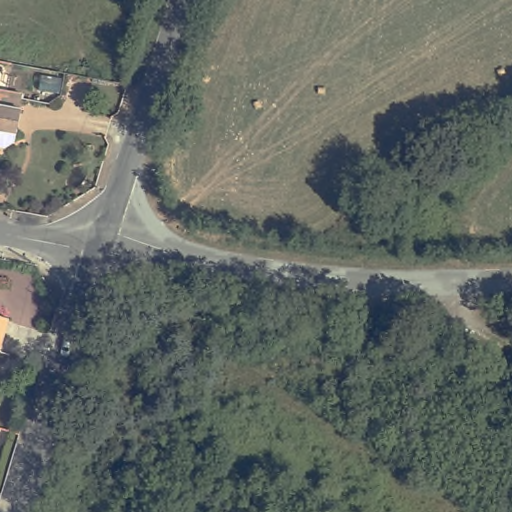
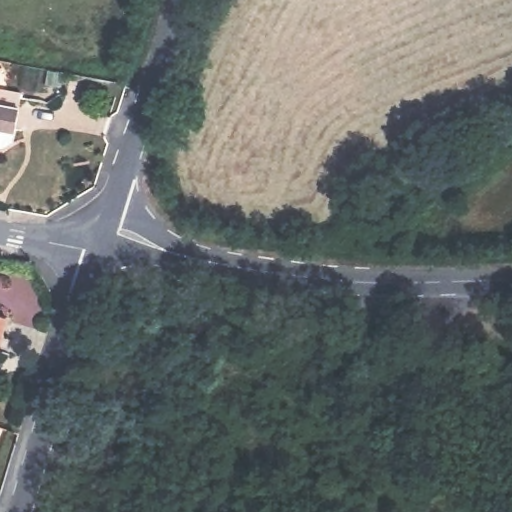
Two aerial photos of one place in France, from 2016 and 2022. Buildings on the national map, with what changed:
unchanged [(26,102),(24,115),(16,157),(0,154),(0,97),(5,99),(26,102)]
unchanged [(4,360),(0,359),(0,317),(13,321),(4,360)]

